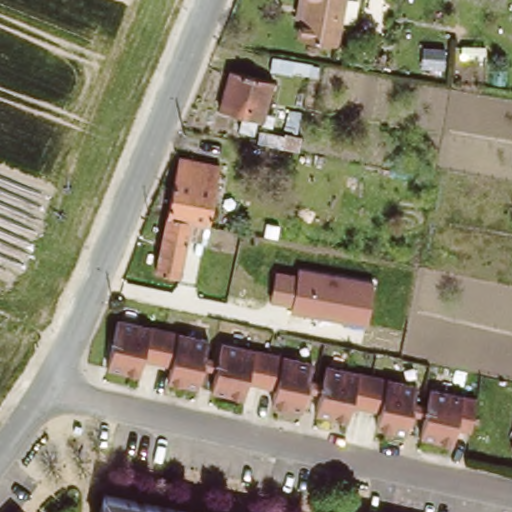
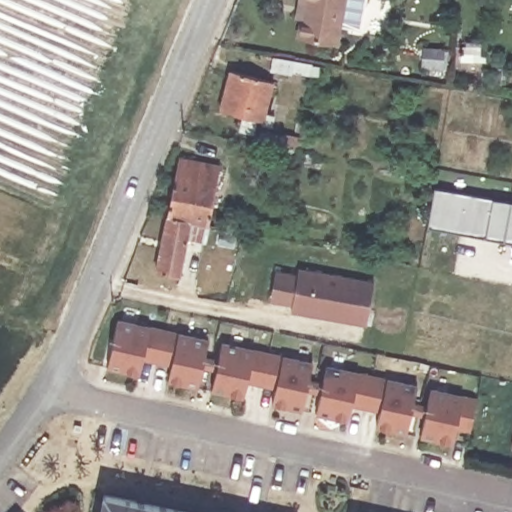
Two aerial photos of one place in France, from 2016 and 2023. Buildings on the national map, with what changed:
unchanged [(302,15),(297,14),(299,0),(344,0),(335,41),(299,34),(302,15)]
unchanged [(265,120),(258,119),(255,134),(240,132),(243,116),(222,113),(229,73),(272,80),(265,120)]
unchanged [(270,149),(258,147),(260,143),(270,146),(270,149)]
unchanged [(271,162),(272,154),(278,155),(277,163),(271,162)]
unchanged [(192,222),(168,217),(180,161),(220,169),(210,225),(192,222)]
new [(425,227),(432,187),(512,202),(512,243),(425,227)]
unchanged [(157,270),(168,217),(192,222),(180,276),(157,270)]
unchanged [(295,274),(296,268),(372,284),(363,328),(288,314),(290,306),(268,302),(275,270),(295,274)]
unchanged [(147,361),(143,375),(110,368),(120,321),(210,340),(200,387),(170,381),(173,366),(147,361)]
unchanged [(251,382),(248,397),(213,389),(224,343),(315,362),(305,408),(275,402),(278,388),(251,382)]
unchanged [(377,425),(381,409),(355,403),(350,419),(319,412),(329,366),(419,384),(408,431),(377,425)]
unchanged [(457,425),(453,441),(422,435),(432,387),(480,397),(474,428),(457,425)]
unchanged [(182,512),(95,512),(100,494),(182,512)]

